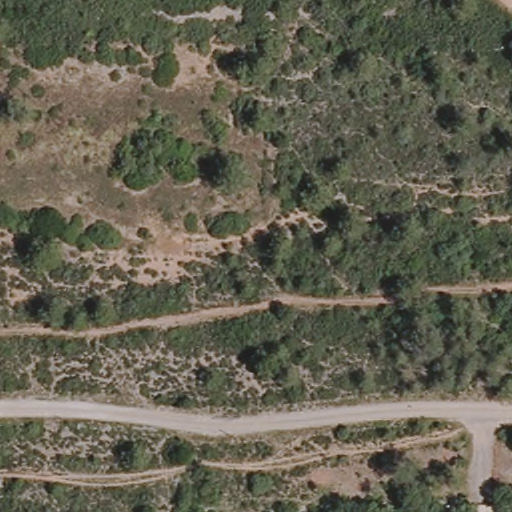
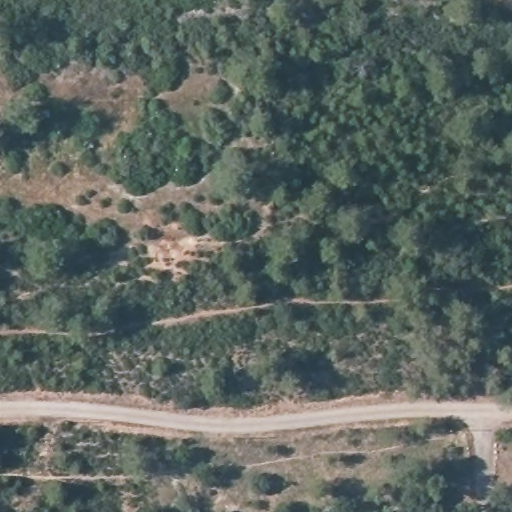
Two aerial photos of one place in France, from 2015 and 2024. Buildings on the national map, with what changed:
[]

